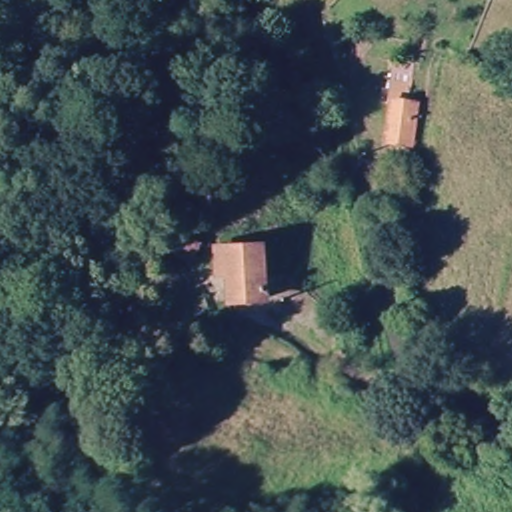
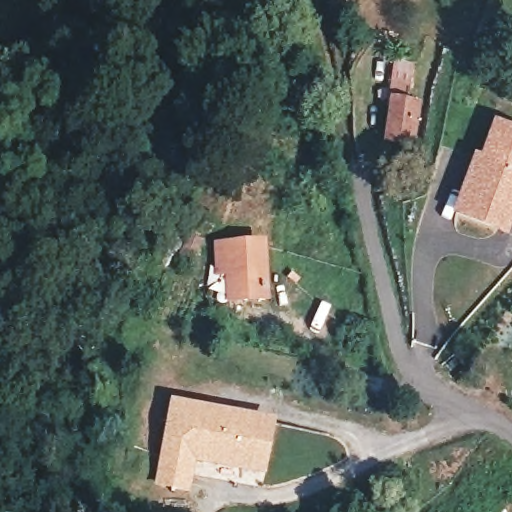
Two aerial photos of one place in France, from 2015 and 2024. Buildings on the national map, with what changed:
unchanged [(389,137),(396,100),(389,99),(392,78),(394,61),(396,51),(419,55),(416,80),(413,102),(421,103),(414,142),(389,137)]
new [(480,159),(493,121),(512,128),(512,226),(508,238),(452,217),(474,156),(480,159)]
unchanged [(264,244),(268,298),(233,301),(230,272),(218,273),(217,247),(228,247),(264,244)]
unchanged [(191,271),(181,266),(190,246),(200,251),(191,271)]
new [(276,422),(266,478),(195,465),(190,494),(153,487),(169,403),(276,422)]

